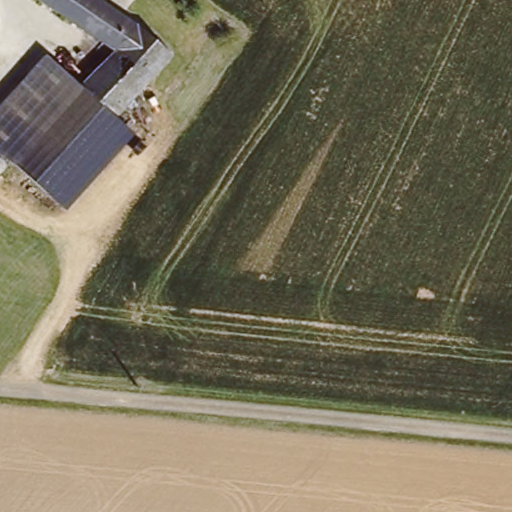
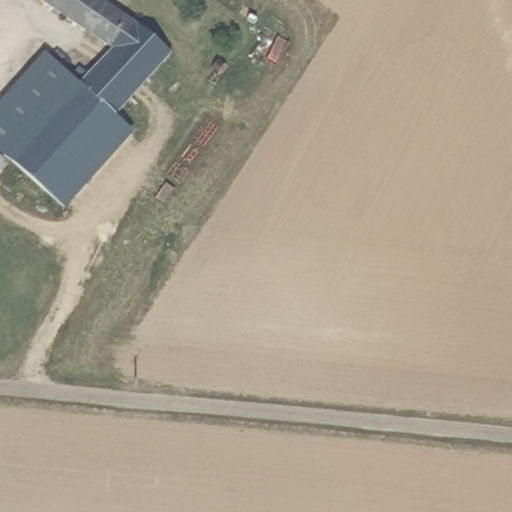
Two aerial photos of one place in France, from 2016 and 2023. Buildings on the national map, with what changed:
unchanged [(103,45),(65,18),(39,0),(109,0),(145,26),(170,51),(120,104),(80,71),(103,45)]
unchanged [(0,155),(0,101),(45,54),(80,85),(7,163),(0,155)]
unchanged [(5,165),(7,163),(80,85),(85,81),(125,114),(143,130),(67,210),(5,165)]

